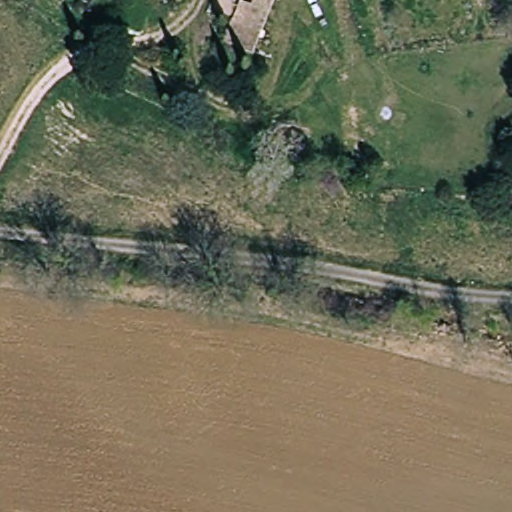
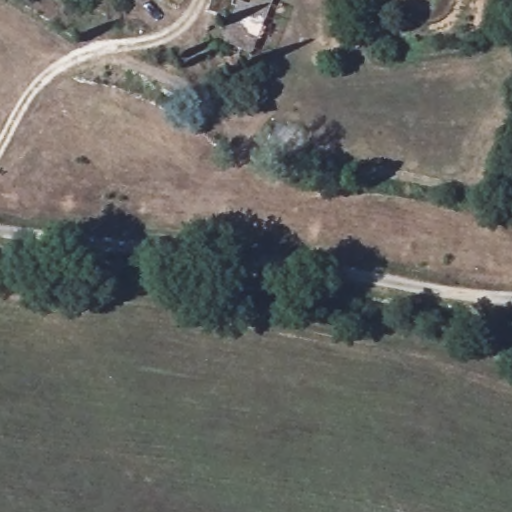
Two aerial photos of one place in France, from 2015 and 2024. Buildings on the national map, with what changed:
unchanged [(225,41),(231,14),(212,11),(216,0),(245,0),(271,0),(253,50),(225,41)]

